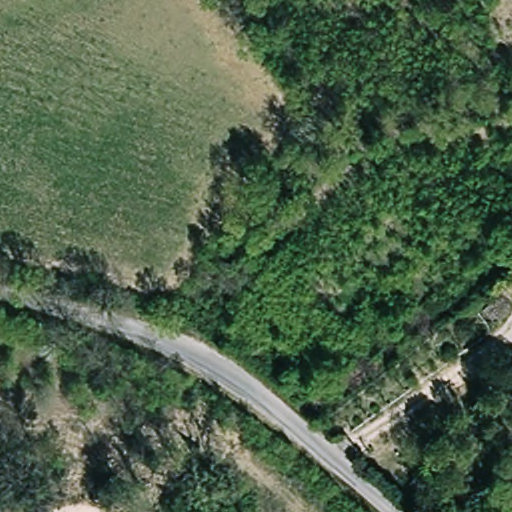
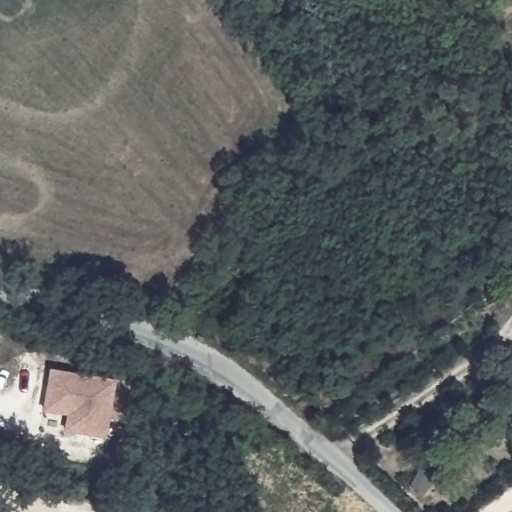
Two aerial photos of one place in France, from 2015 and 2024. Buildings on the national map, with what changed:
new [(50,371),(113,380),(105,437),(65,431),(67,415),(43,411),(50,371)]

